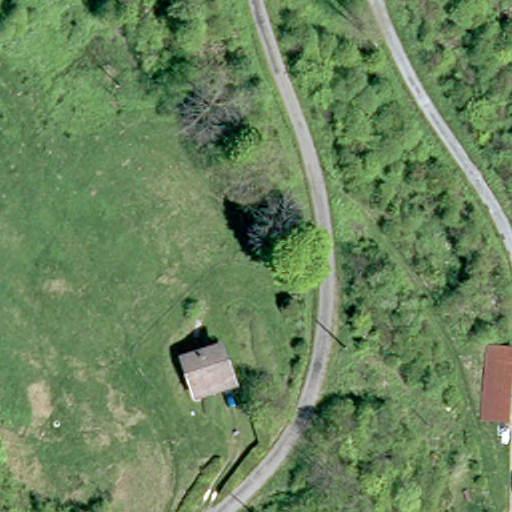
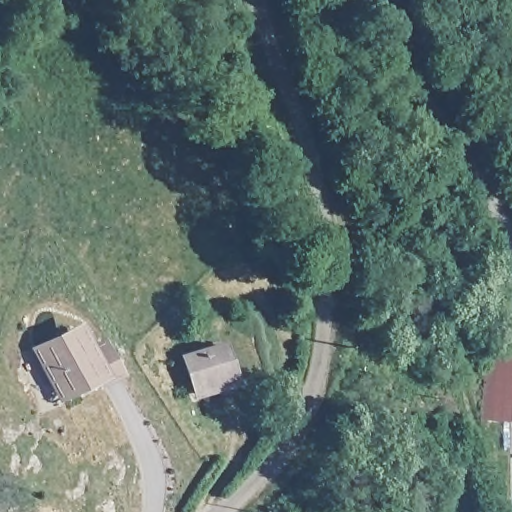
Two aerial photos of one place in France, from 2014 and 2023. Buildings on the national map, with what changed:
new [(125,374),(102,388),(98,383),(59,406),(28,350),(80,321),(92,345),(105,338),(125,374)]
unchanged [(181,350),(218,340),(225,377),(189,387),(181,350)]
unchanged [(506,415),(480,414),(481,343),(508,344),(506,415)]

